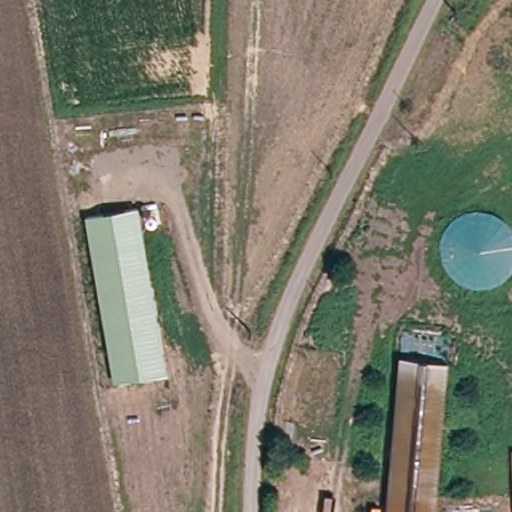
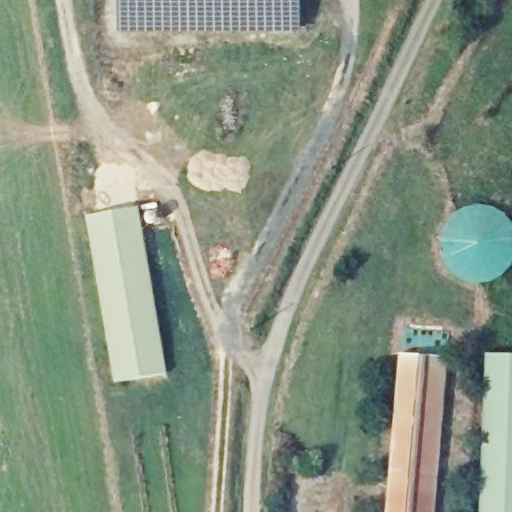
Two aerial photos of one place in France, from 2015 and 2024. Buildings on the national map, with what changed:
new [(118,0),(300,0),(300,34),(117,35),(118,0)]
unchanged [(138,209),(167,375),(114,383),(86,217),(138,209)]
new [(486,353),(512,355),(512,512),(479,512),(486,353)]
unchanged [(438,512),(391,512),(404,355),(451,359),(438,512)]

